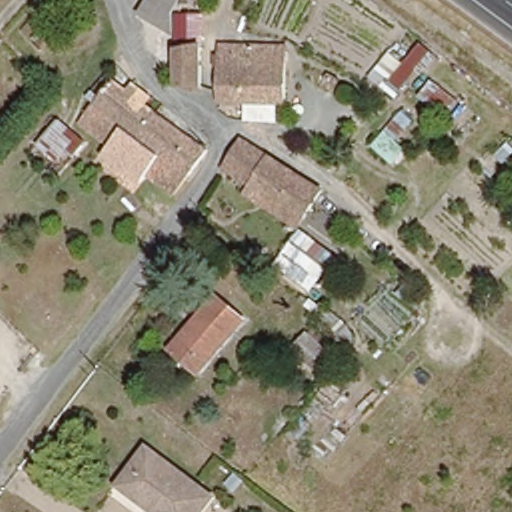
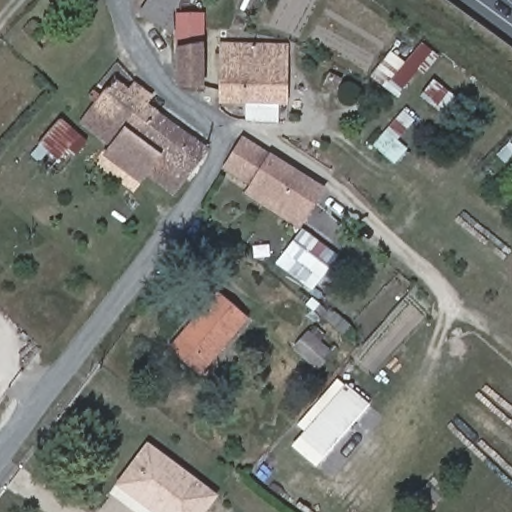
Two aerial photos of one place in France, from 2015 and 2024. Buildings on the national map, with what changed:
unchanged [(165,29),(140,11),(143,0),(173,0),(170,4),(165,29)]
unchanged [(30,14),(50,34),(39,45),(19,25),(30,14)]
unchanged [(179,60),(178,33),(179,14),(199,14),(203,86),(181,86),(179,60)]
unchanged [(389,49),(403,61),(420,40),(438,53),(423,74),(417,68),(395,94),(371,75),(389,49)]
unchanged [(222,41),(259,46),(259,69),(272,69),(273,64),(273,46),(284,46),(283,59),(282,64),(284,99),(221,100),(222,41)]
unchanged [(147,170),(141,178),(116,159),(104,149),(110,141),(81,118),(95,100),(113,77),(157,110),(207,146),(189,172),(175,191),(147,170)]
unchanged [(86,140),(66,165),(38,142),(57,117),(86,140)]
unchanged [(242,134),(323,186),(307,214),(223,162),(235,144),(242,134)]
unchanged [(284,243),(296,223),(314,233),(302,254),(284,243)]
unchanged [(243,320),(206,369),(174,343),(210,295),(243,320)]
unchanged [(311,312),(353,345),(336,366),(294,332),(311,312)]
new [(314,467),(290,446),(303,432),(296,425),(337,379),(368,406),(314,467)]
unchanged [(115,485),(143,446),(209,496),(197,512),(148,512),(115,485)]

